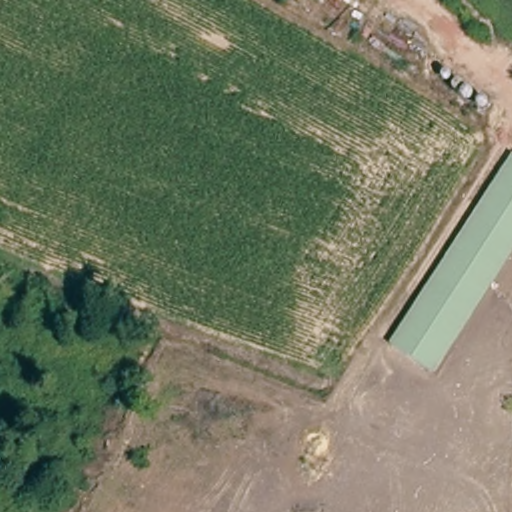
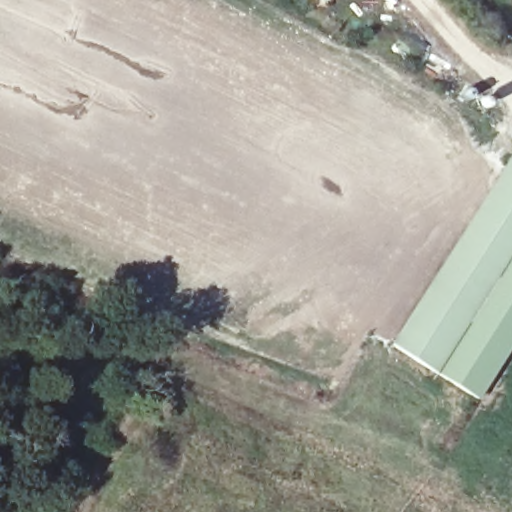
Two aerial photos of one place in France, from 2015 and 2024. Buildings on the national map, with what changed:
new [(317,0),(320,0),(319,2),(317,0)]
new [(449,89),(448,85),(453,77),(459,77),(486,97),(489,101),(487,107),(485,109),(479,109),(449,89)]
unchanged [(392,347),(512,156),(512,242),(430,370),(392,347)]
new [(430,370),(512,242),(512,346),(476,400),(430,370)]

